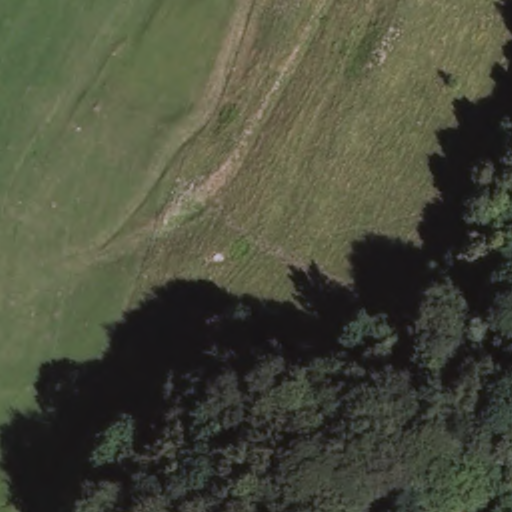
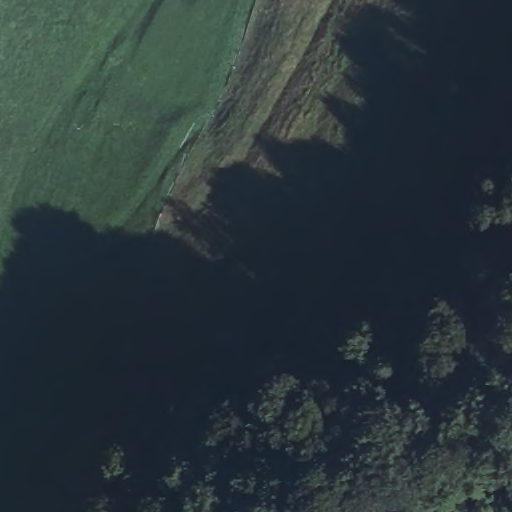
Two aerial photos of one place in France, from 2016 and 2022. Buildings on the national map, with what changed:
[]

